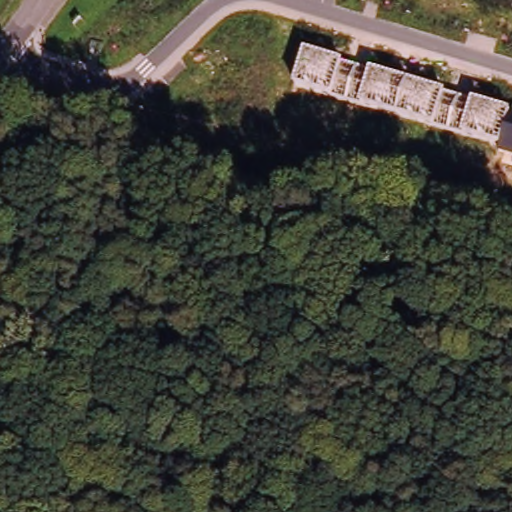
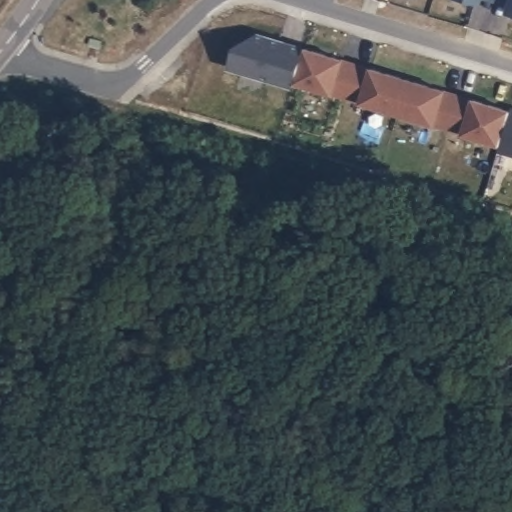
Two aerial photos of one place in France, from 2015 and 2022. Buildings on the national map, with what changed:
new [(463,0),(481,0),(479,5),(463,0)]
new [(494,4),(483,0),(508,0),(506,7),(494,4)]
new [(512,0),(512,15),(505,13),(508,0),(512,0)]
new [(293,85),(229,66),(235,45),(257,34),(304,48),(293,85)]
unchanged [(370,66),(444,88),(512,108),(512,153),(293,85),(304,48),(370,66)]

